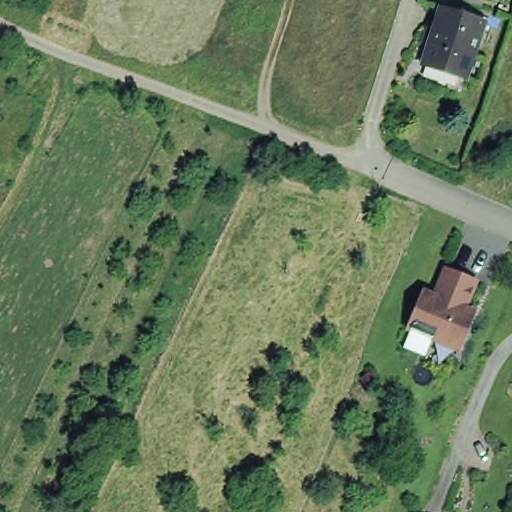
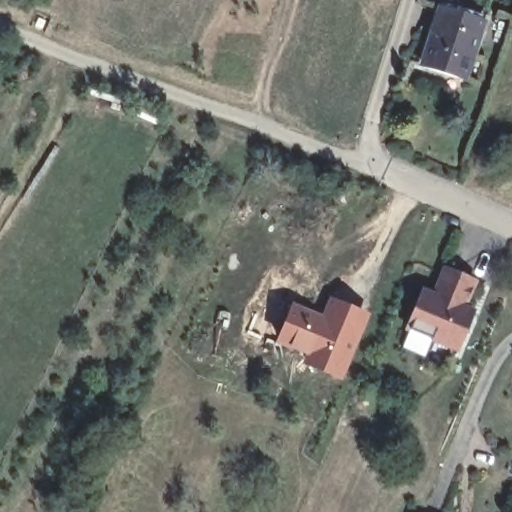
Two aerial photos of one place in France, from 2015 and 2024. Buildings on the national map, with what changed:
unchanged [(459,82),(422,71),(439,12),(482,25),(472,59),(465,83),(459,82)]
unchanged [(470,302),(479,306),(459,351),(432,342),(434,336),(407,326),(423,286),(430,290),(443,263),(479,277),(470,302)]
new [(328,296),(372,316),(345,385),(302,367),(305,359),(274,345),(290,306),(319,318),(328,296)]

